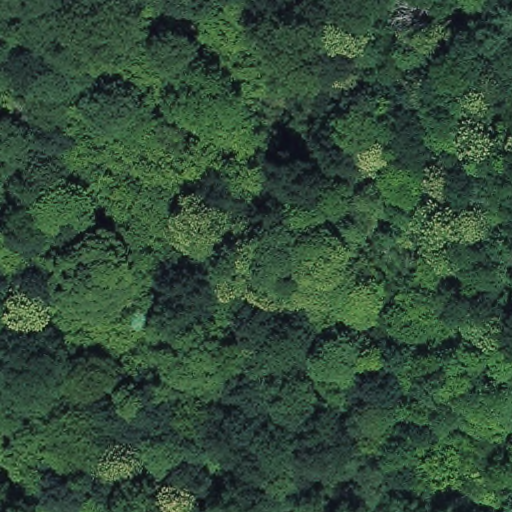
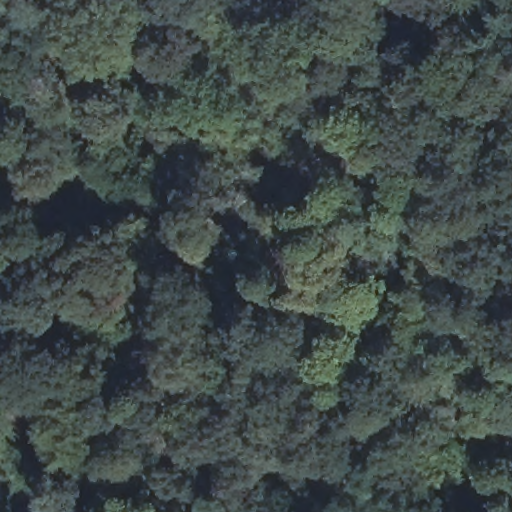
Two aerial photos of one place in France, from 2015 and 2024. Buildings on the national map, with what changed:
unchanged [(415,292),(437,280),(449,300),(427,313),(415,292)]
unchanged [(469,337),(460,344),(452,331),(461,325),(469,337)]
unchanged [(444,411),(427,378),(450,367),(449,362),(455,358),(475,395),(444,411)]

